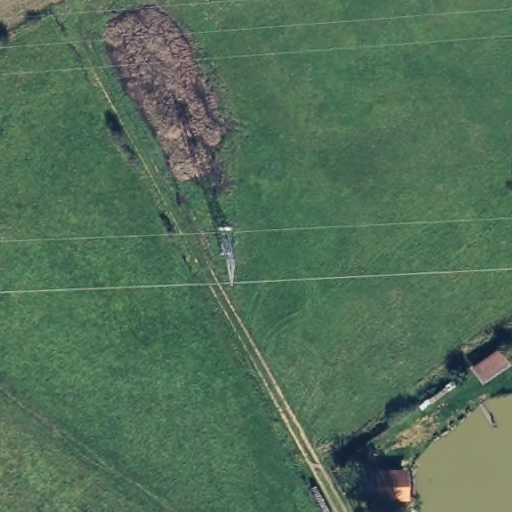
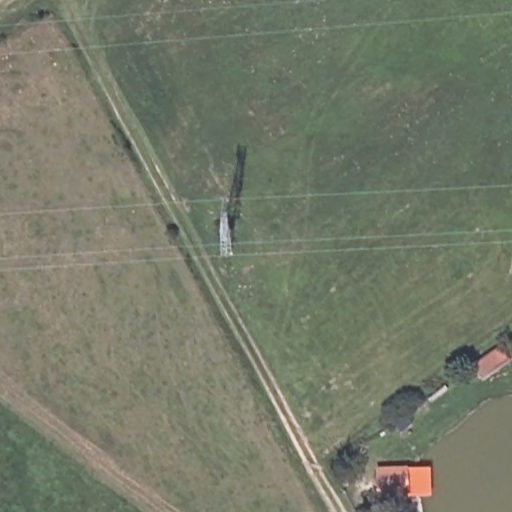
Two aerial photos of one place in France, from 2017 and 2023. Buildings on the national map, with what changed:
unchanged [(382,467),(403,467),(404,492),(383,493),(382,467)]

